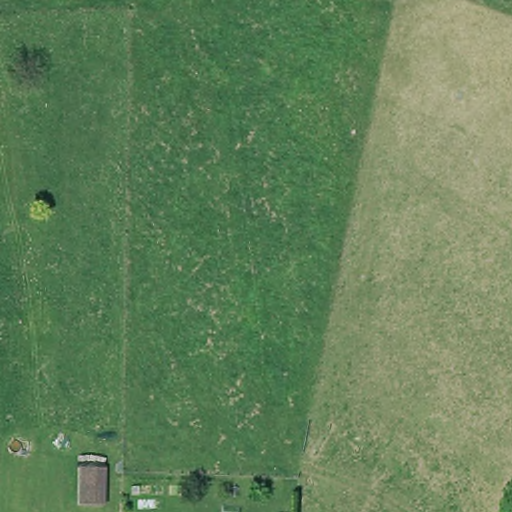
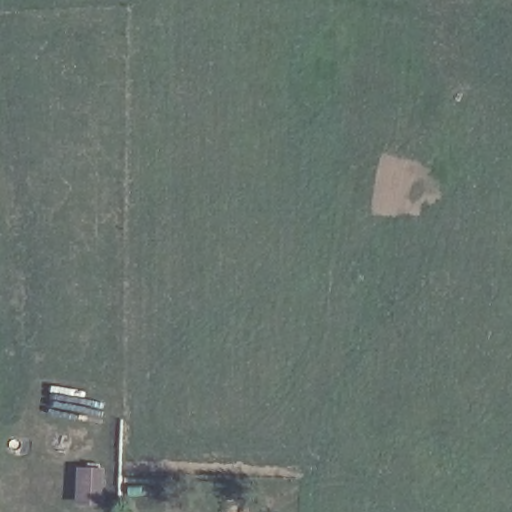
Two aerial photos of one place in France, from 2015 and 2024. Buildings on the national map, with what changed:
unchanged [(107,466),(107,511),(75,510),(76,467),(107,466)]

